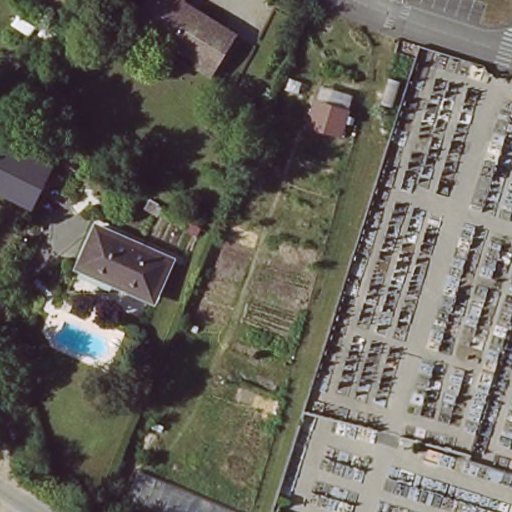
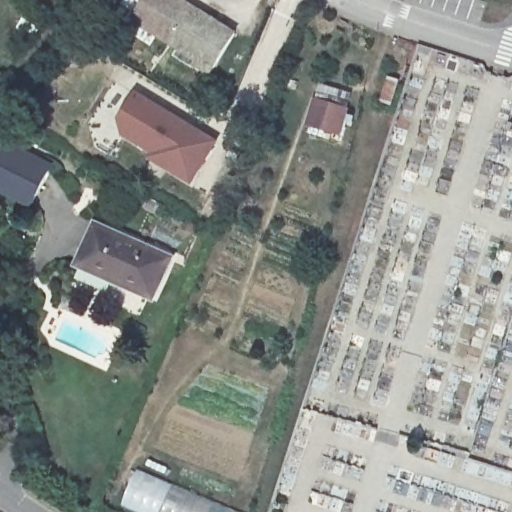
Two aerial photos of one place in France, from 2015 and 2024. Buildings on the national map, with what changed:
unchanged [(194,58),(136,12),(145,0),(185,0),(233,36),(203,76),(189,66),(194,58)]
new [(135,92),(220,138),(193,187),(149,161),(153,154),(123,138),(119,120),(135,92)]
unchanged [(355,109),(350,138),(311,130),(316,102),(355,109)]
unchanged [(28,204),(0,189),(0,138),(51,166),(28,204)]
unchanged [(168,259),(150,296),(118,279),(115,285),(78,265),(98,222),(168,259)]
unchanged [(235,512),(128,512),(125,510),(140,472),(235,512)]

